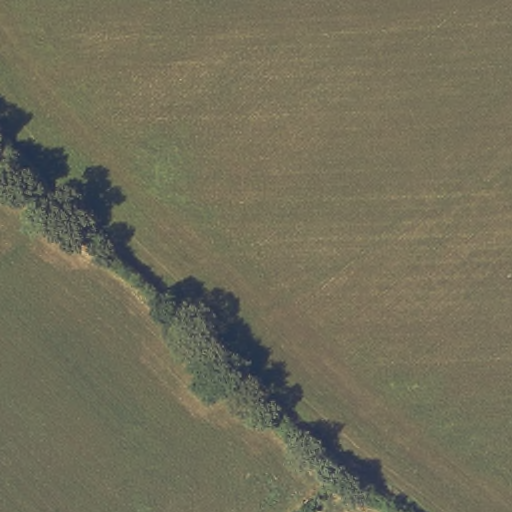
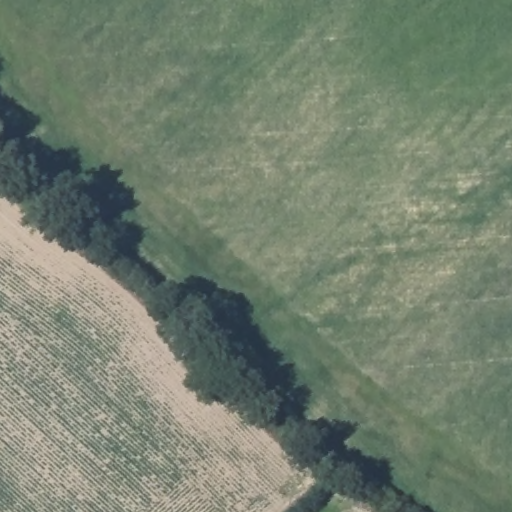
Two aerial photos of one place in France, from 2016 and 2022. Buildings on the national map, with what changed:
[]

